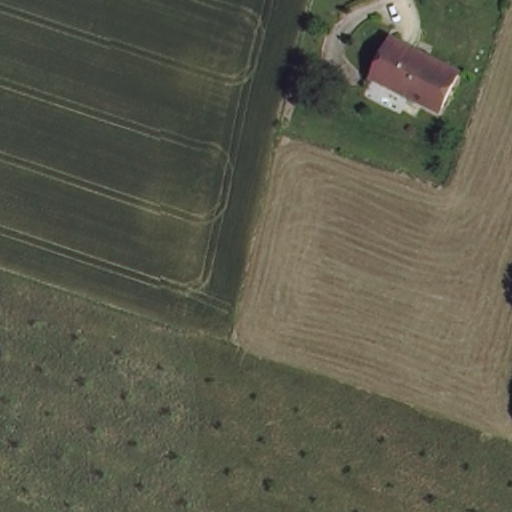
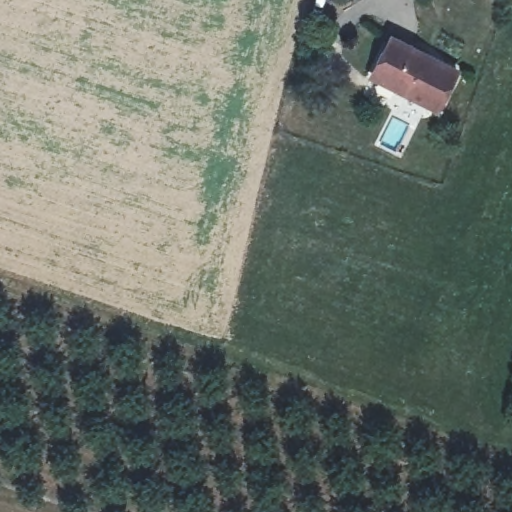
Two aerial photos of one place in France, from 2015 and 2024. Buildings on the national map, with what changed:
unchanged [(377,76),(394,42),(458,75),(440,112),(411,98),(375,79),(377,76)]

